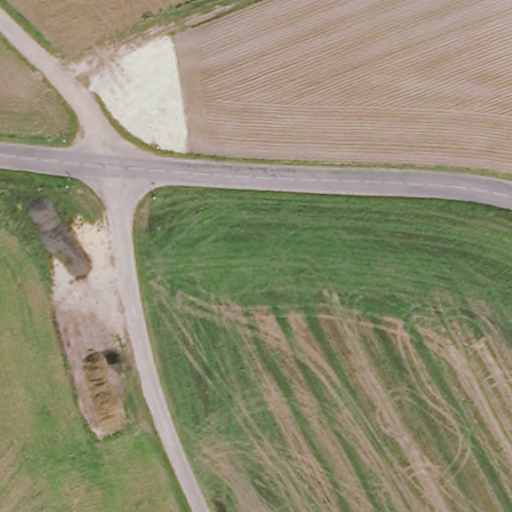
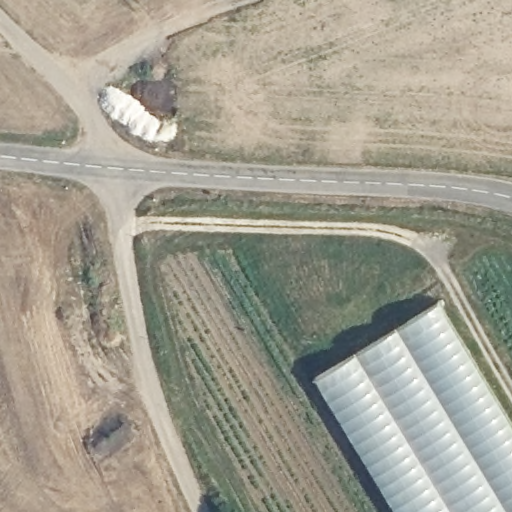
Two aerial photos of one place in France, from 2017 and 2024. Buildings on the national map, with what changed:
new [(399,512),(317,376),(441,298),(512,416),(512,512),(399,512)]

